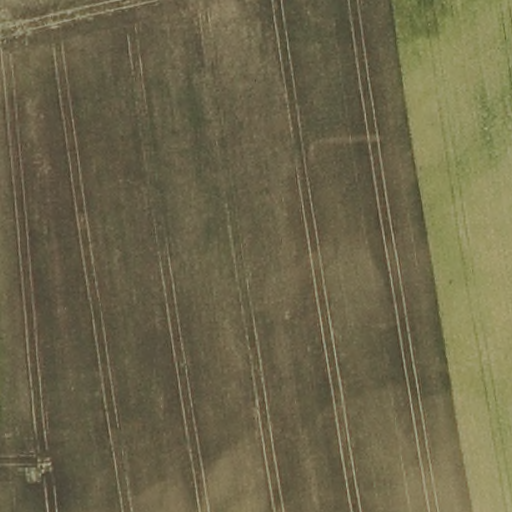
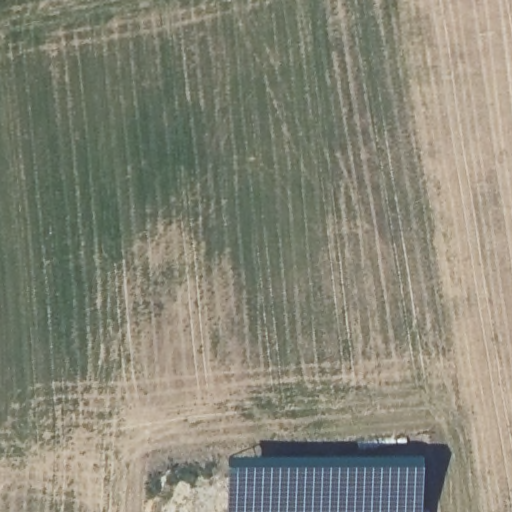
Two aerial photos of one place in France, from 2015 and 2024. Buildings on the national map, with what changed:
new [(230,464),(259,461),(259,456),(421,454),(421,512),(230,512),(230,464)]

